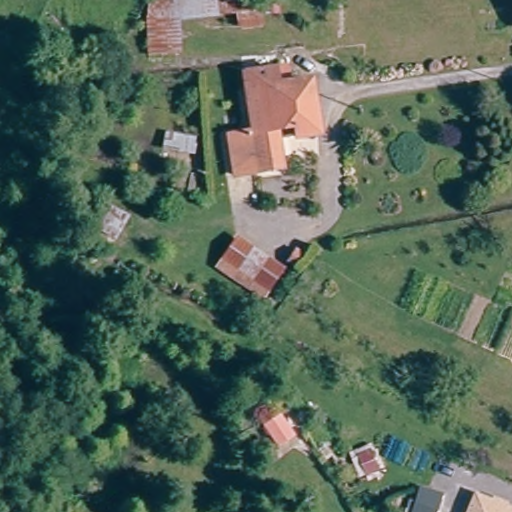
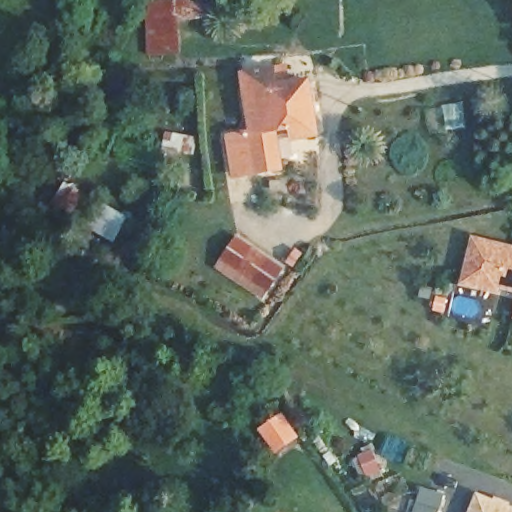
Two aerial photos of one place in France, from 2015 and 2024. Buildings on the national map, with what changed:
unchanged [(169,43),(144,46),(138,0),(163,0),(165,19),(169,43)]
unchanged [(225,11),(165,19),(163,0),(257,0),(257,7),(245,9),(246,21),(227,24),(225,11)]
unchanged [(264,110),(260,89),(240,91),(238,75),(282,70),(283,84),(301,81),(305,104),(264,110)]
unchanged [(232,177),(225,137),(246,134),(240,91),(260,89),(264,110),(305,104),(310,136),(290,139),(289,130),(270,133),(276,170),(232,177)]
new [(502,290),(501,294),(462,285),(473,236),(512,246),(512,291),(502,290)]
unchanged [(275,268),(261,291),(254,286),(216,262),(230,240),(249,251),(275,268)]
unchanged [(410,508),(416,510),(422,490),(435,494),(444,497),(439,512),(409,512),(410,508)]
unchanged [(473,508),(481,512),(471,512),(473,508)]

